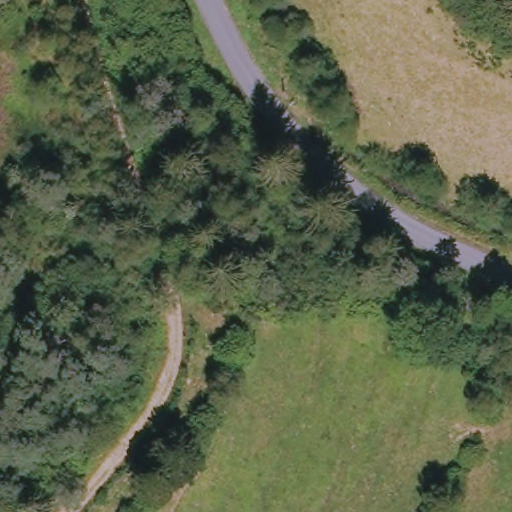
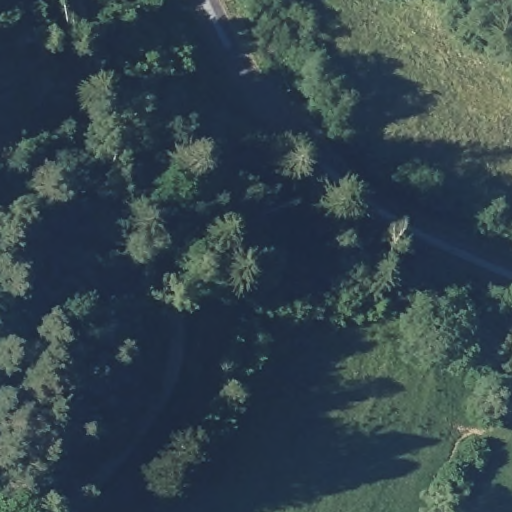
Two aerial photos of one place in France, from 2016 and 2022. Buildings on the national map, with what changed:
[]

